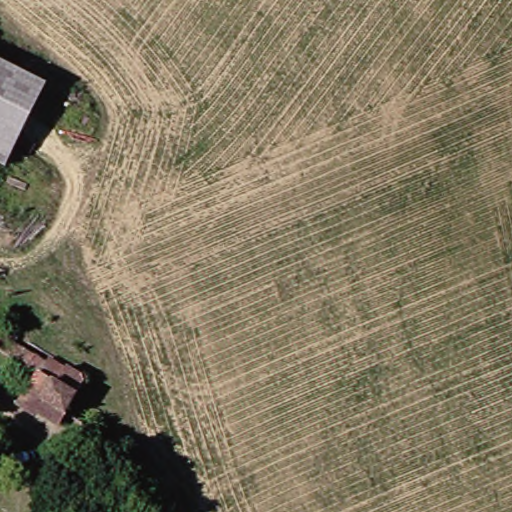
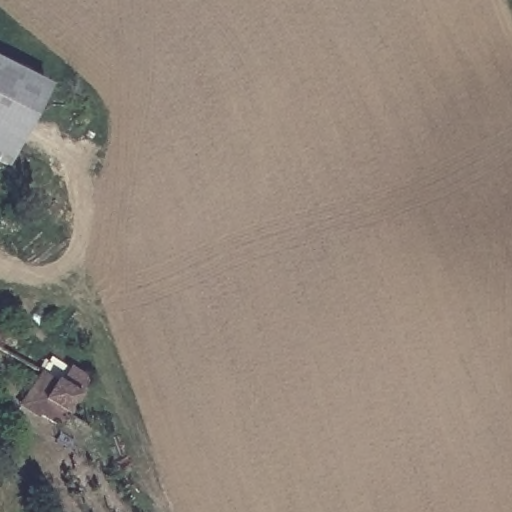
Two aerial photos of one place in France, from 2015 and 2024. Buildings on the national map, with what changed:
unchanged [(41,87),(3,162),(0,160),(0,68),(41,87)]
unchanged [(47,370),(45,379),(62,387),(53,408),(0,379),(0,347),(47,370)]

